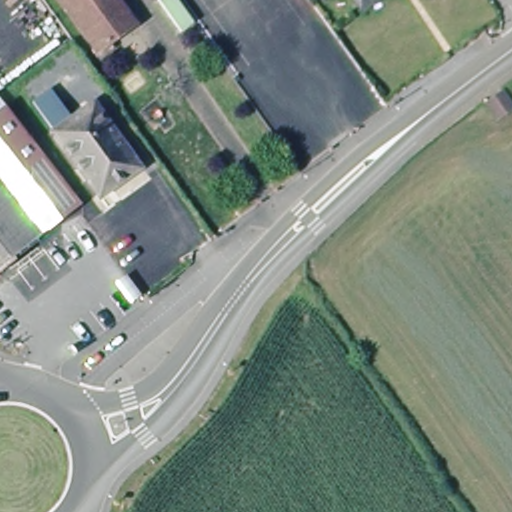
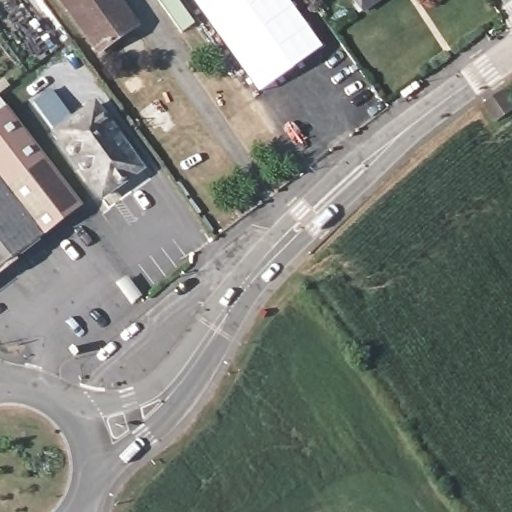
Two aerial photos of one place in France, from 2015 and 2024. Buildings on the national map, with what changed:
unchanged [(105,54),(66,0),(122,0),(142,26),(105,54)]
new [(193,24),(180,33),(157,0),(177,0),(193,24)]
new [(321,46),(257,92),(191,0),(288,0),(321,46)]
unchanged [(362,0),(379,0),(368,8),(362,0)]
unchanged [(49,89),(75,124),(56,138),(29,105),(49,89)]
unchanged [(82,209),(0,272),(0,101),(82,209)]
unchanged [(142,173),(102,202),(56,138),(75,124),(95,110),(142,173)]

